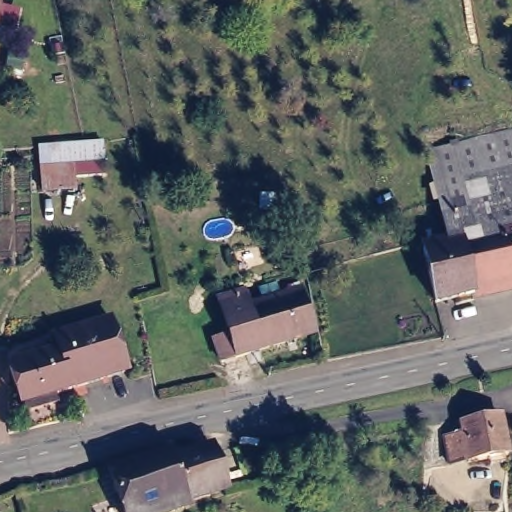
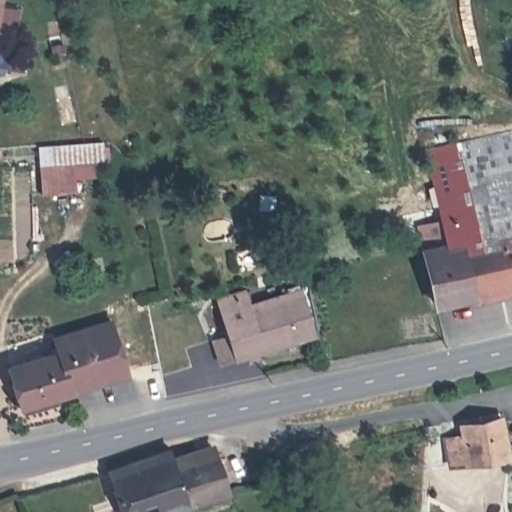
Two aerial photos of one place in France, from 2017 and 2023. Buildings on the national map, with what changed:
unchanged [(429,151),(512,133),(512,161),(462,173),(465,204),(440,210),(429,151)]
unchanged [(36,142),(105,138),(105,162),(76,164),(77,193),(37,194),(36,142)]
unchanged [(482,305),(470,295),(435,303),(420,243),(442,234),(440,210),(465,204),(462,173),(512,161),(512,296),(482,305)]
unchanged [(258,359),(257,351),(242,356),(224,362),(217,339),(212,322),(229,317),(223,299),(247,292),(251,305),(290,294),(287,289),(303,284),(318,332),(300,337),(302,347),(294,349),(290,340),(262,349),(264,357),(258,359)]
unchanged [(63,348),(60,336),(115,319),(132,372),(27,403),(15,364),(63,348)]
unchanged [(508,448),(467,455),(466,453),(446,456),(442,431),(462,427),(460,417),(500,409),(508,448)]
unchanged [(227,486),(150,512),(122,512),(107,469),(170,447),(175,460),(213,447),(227,486)]

